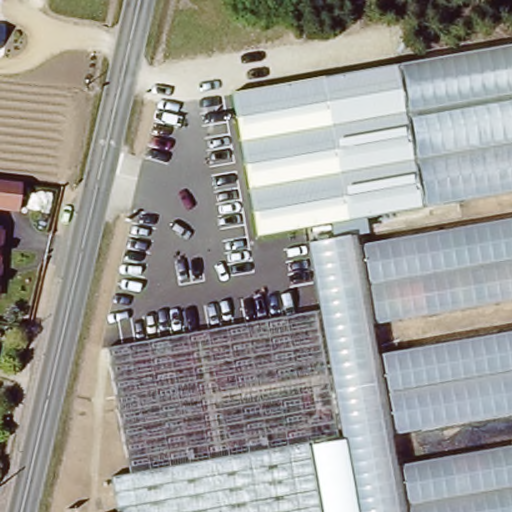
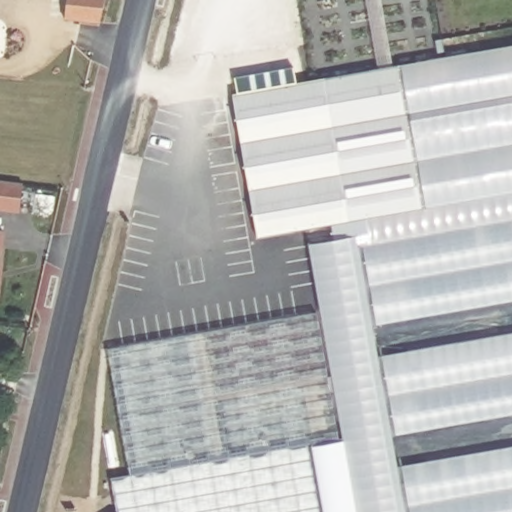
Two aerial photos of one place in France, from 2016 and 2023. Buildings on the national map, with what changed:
new [(106,0),(101,22),(65,16),(67,0),(106,0)]
unchanged [(512,44),(512,192),(422,208),(398,65),(512,44)]
unchanged [(329,224),(255,237),(231,94),(398,65),(422,208),(365,218),(367,233),(357,236),(355,231),(333,236),(329,224)]
unchanged [(19,213),(0,211),(0,179),(22,182),(19,213)]
unchanged [(111,480),(134,476),(115,337),(320,314),(310,242),(355,231),(358,248),(512,221),(512,295),(368,315),(375,357),(512,333),(512,409),(397,433),(405,471),(512,450),(512,512),(361,512),(340,432),(310,438),(326,512),(117,512),(111,480)]
unchanged [(0,284),(0,229),(7,231),(0,284)]

